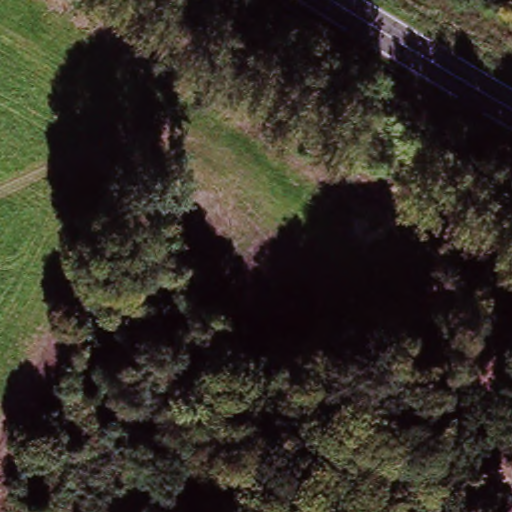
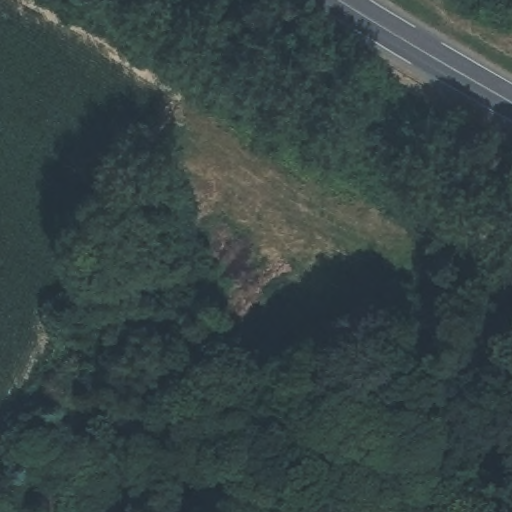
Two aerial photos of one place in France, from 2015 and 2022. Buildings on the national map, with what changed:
[]

